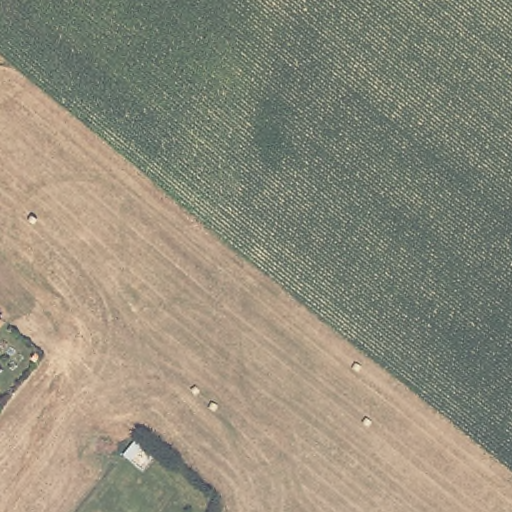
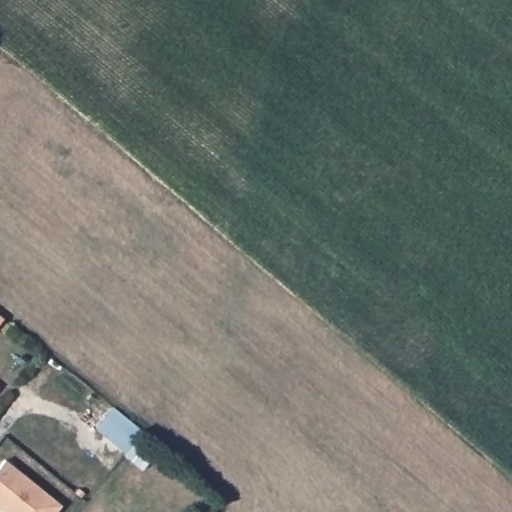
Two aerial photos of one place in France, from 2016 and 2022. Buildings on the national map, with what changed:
unchanged [(0,324),(0,319),(2,321),(0,324)]
new [(62,506),(58,512),(3,512),(0,510),(0,468),(5,461),(62,506)]

